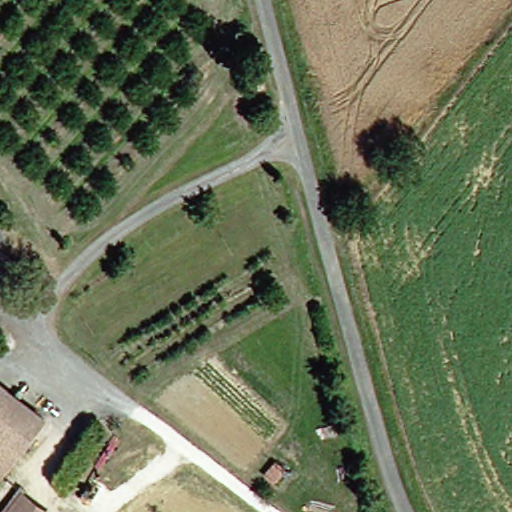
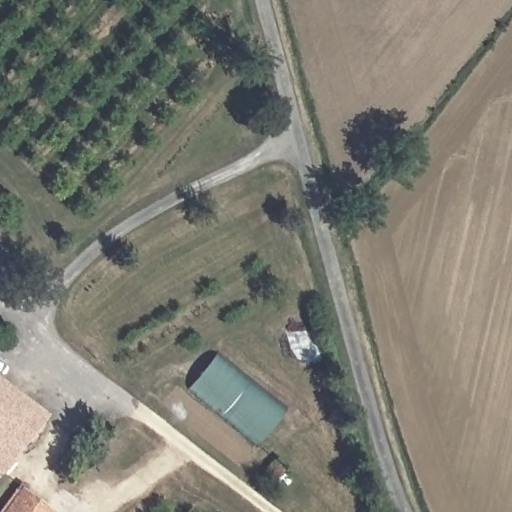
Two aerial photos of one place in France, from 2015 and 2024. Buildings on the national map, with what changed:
new [(288,405),(260,442),(190,390),(215,353),(288,405)]
unchanged [(44,418),(0,473),(0,385),(44,418)]
unchanged [(27,494),(52,512),(15,512),(27,494)]

